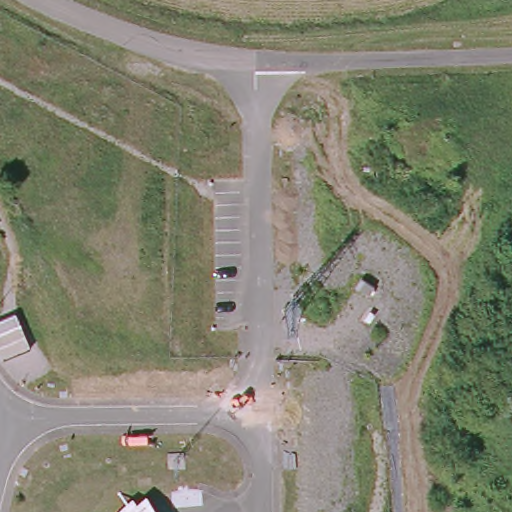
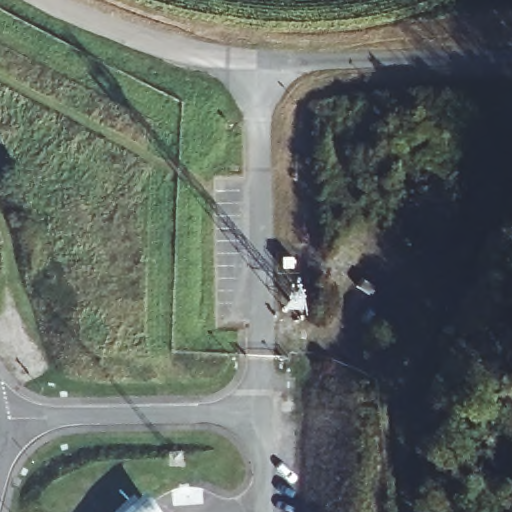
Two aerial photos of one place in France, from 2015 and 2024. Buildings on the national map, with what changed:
unchanged [(410,160),(400,132),(437,111),(446,167),(410,160)]
unchanged [(137,496),(146,488),(153,496),(135,512),(110,512),(131,489),(137,496)]
unchanged [(163,512),(135,512),(153,496),(163,512)]

